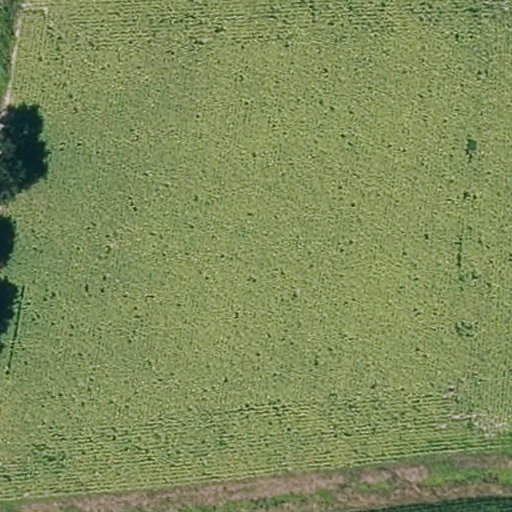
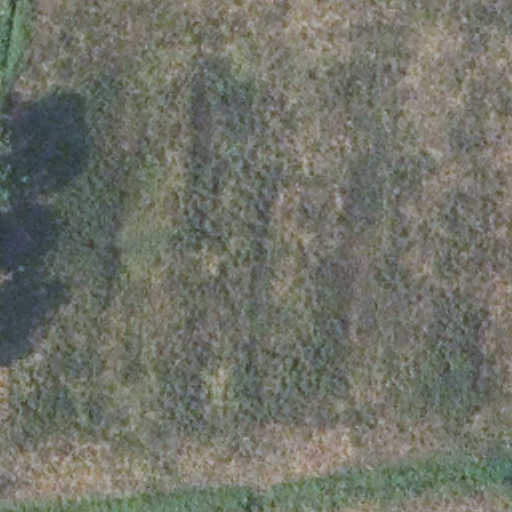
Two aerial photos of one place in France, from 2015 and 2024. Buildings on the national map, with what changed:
[]

